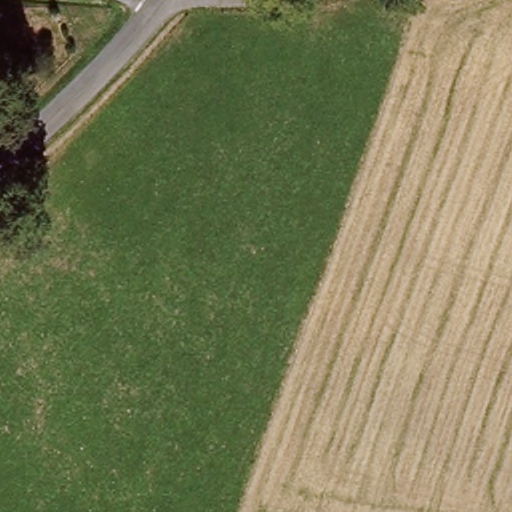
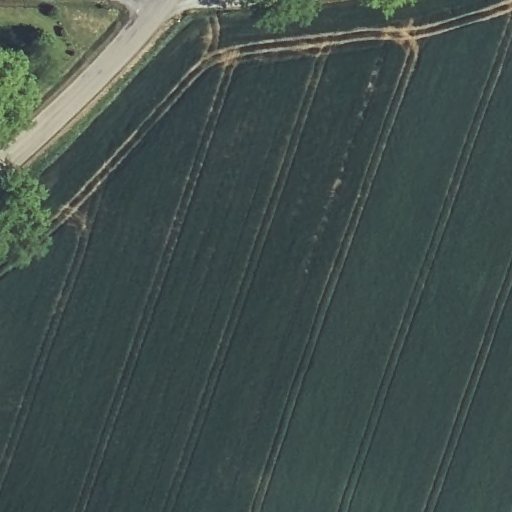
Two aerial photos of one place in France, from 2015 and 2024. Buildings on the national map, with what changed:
[]

